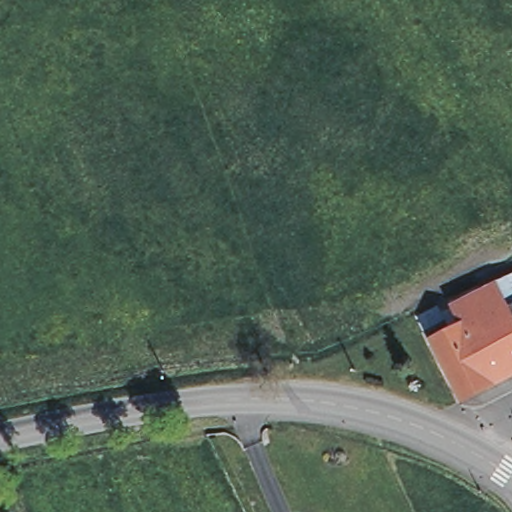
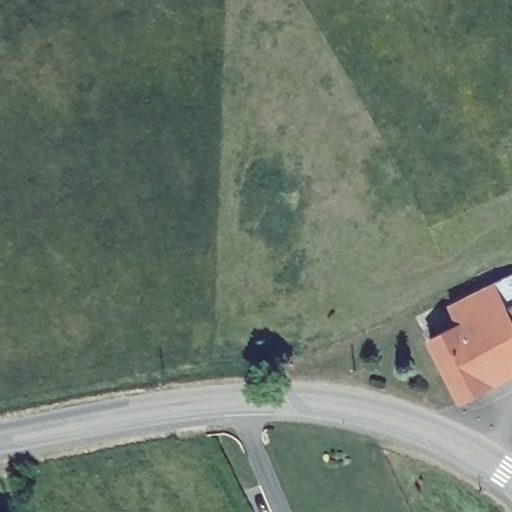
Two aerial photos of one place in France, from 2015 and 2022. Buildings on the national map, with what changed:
unchanged [(463,326),(455,307),(502,285),(512,280),(512,377),(465,402),(435,340),(463,326)]

